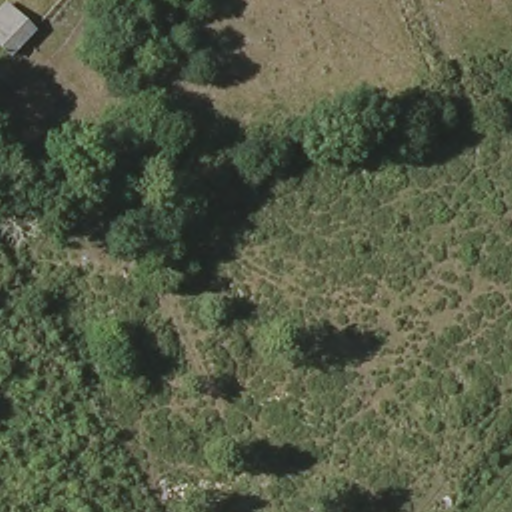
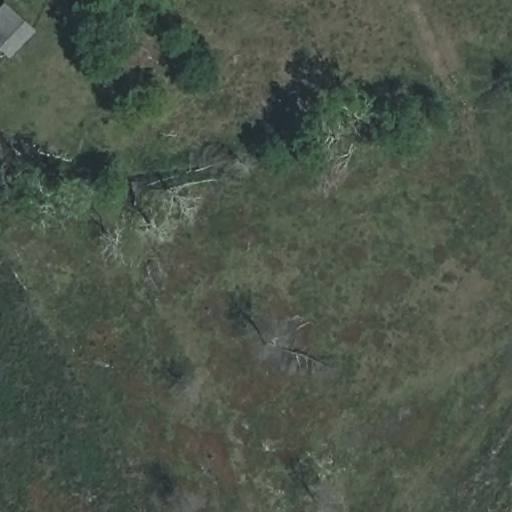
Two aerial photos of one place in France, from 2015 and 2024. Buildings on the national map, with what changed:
unchanged [(5,3),(35,34),(8,61),(0,54),(0,7),(5,3)]

